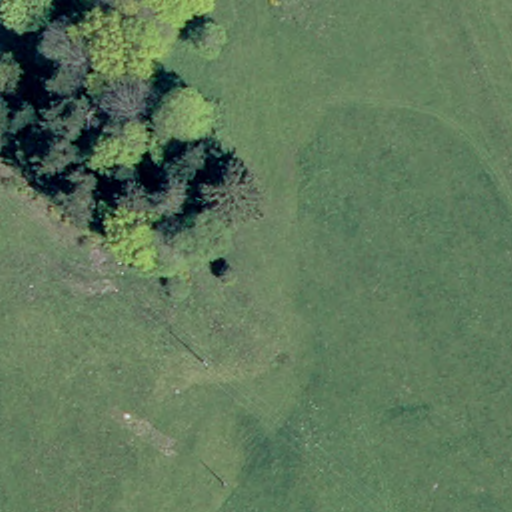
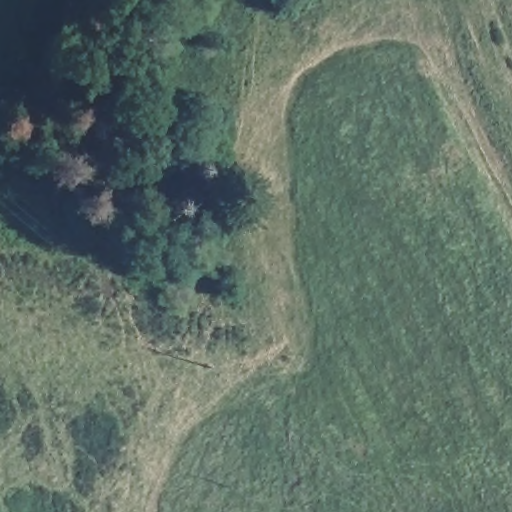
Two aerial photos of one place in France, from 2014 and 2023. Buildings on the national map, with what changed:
[]

